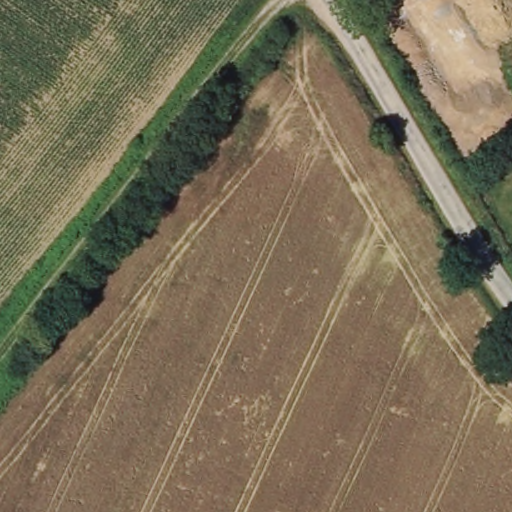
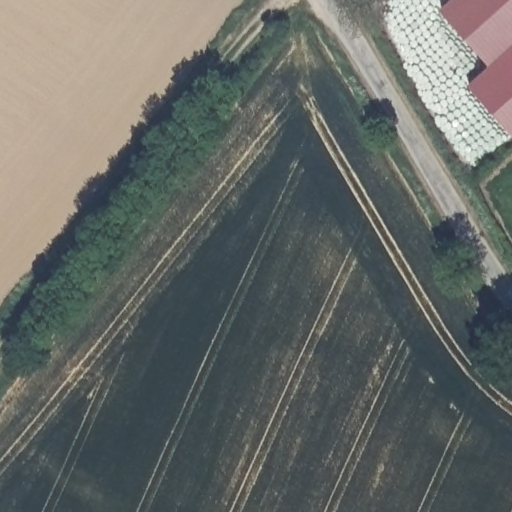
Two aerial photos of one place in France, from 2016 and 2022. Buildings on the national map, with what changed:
new [(491,69),(442,10),(454,0),(512,0),(512,136),(470,86),(491,69)]

